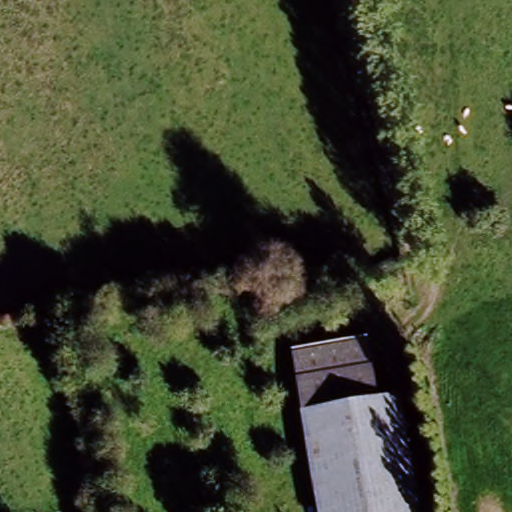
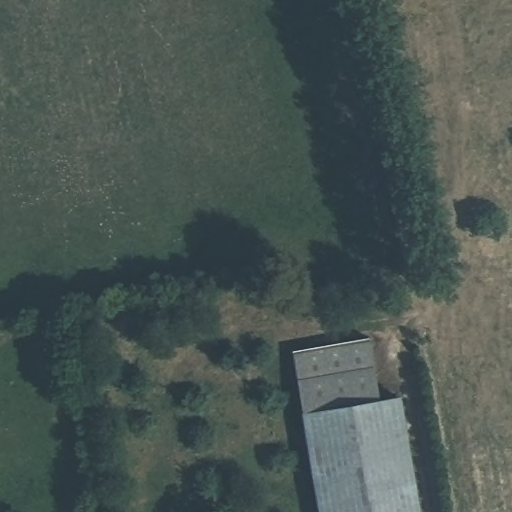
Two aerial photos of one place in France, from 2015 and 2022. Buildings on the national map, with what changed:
unchanged [(290,348),(365,335),(377,400),(300,413),(290,348)]
unchanged [(399,396),(418,512),(317,512),(300,413),(377,400),(399,396)]

